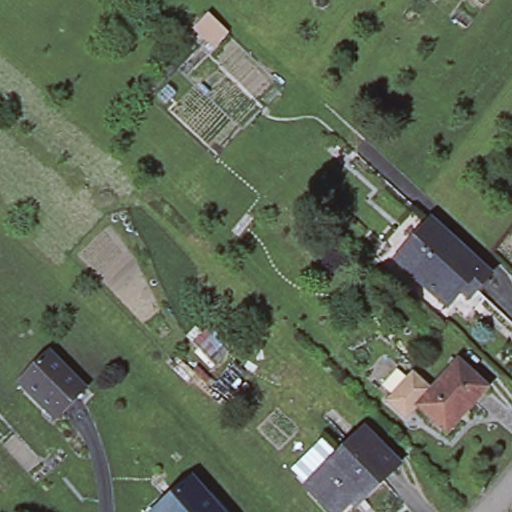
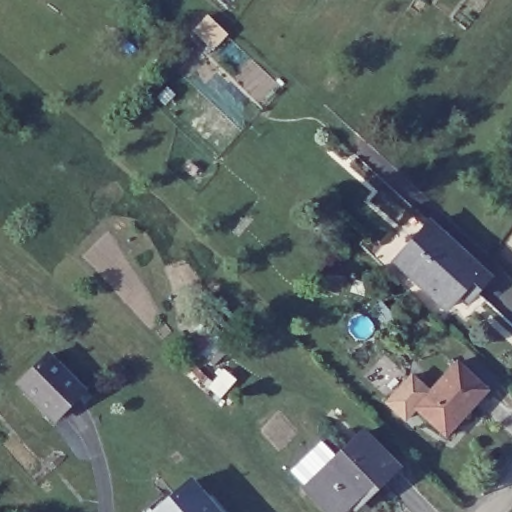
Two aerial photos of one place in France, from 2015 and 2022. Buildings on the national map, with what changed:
unchanged [(214,51),(195,34),(208,19),(228,36),(214,51)]
unchanged [(425,217),(485,272),(463,297),(455,290),(442,304),(390,256),(425,217)]
unchanged [(493,382),(451,426),(421,397),(411,408),(394,392),(418,366),(435,382),(463,353),(493,382)]
unchanged [(47,357),(83,391),(55,421),(19,385),(47,357)]
unchanged [(307,488),(297,477),(328,447),(338,458),(364,433),(398,469),(355,509),(352,512),(330,512),(307,488)]
unchanged [(193,482),(220,512),(158,512),(193,482)]

